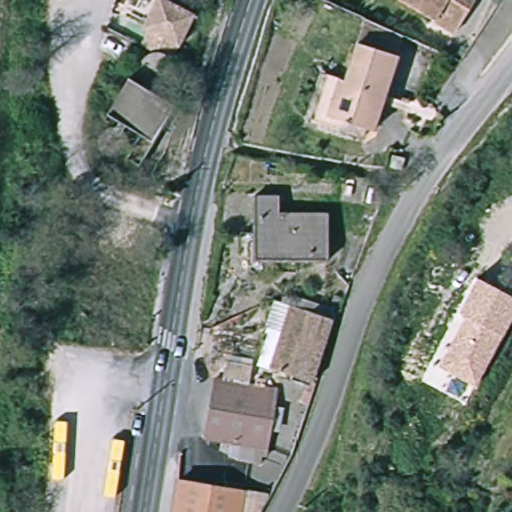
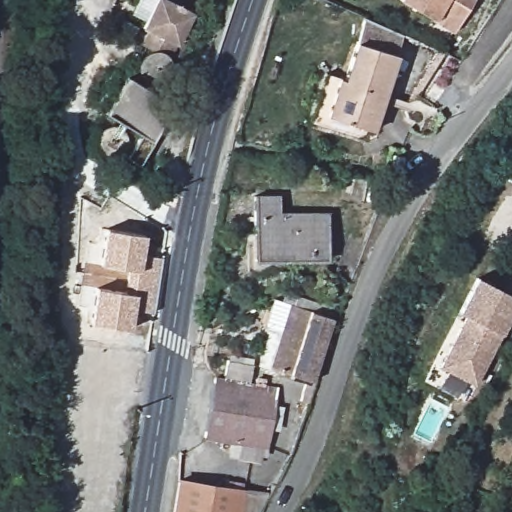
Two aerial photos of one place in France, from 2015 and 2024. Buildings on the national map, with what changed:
unchanged [(169,80),(166,82),(162,83),(158,84),(155,82),(152,81),(148,77),(147,74),(146,70),(146,66),(146,64),(149,59),(152,56),(157,54),(162,54),(165,54),(143,40),(142,40),(151,25),(144,21),(157,0),(176,0),(199,14),(172,57),(169,56),(171,58),(172,60),(174,65),(174,68),(174,71),(173,75),(171,77),(169,80)]
unchanged [(439,16),(402,1),(403,0),(475,0),(465,18),(460,27),(439,16)]
unchanged [(331,112),(343,76),(353,79),(364,45),(372,22),(404,32),(396,54),(371,126),(331,112)]
unchanged [(135,160),(138,155),(133,152),(138,145),(143,135),(110,115),(132,78),(179,104),(151,152),(144,165),(135,160)]
unchanged [(128,146),(127,149),(125,151),(123,153),(120,155),(118,155),(113,155),(110,154),(107,152),(105,150),(104,146),(103,145),(104,141),(104,138),(106,136),(108,133),(110,131),(115,130),(116,130),(118,130),(123,133),(126,135),(127,138),(128,143),(128,146)]
unchanged [(258,268),(258,205),(284,205),(284,221),(332,220),(332,267),(258,268)]
new [(134,306),(130,328),(90,320),(94,287),(120,291),(125,267),(99,262),(105,228),(145,235),(143,255),(162,257),(152,313),(134,306)]
unchanged [(476,280),(512,298),(512,318),(502,336),(477,386),(440,365),(467,317),(459,312),(476,280)]
unchanged [(281,374),(303,311),(332,321),(311,383),(281,374)]
unchanged [(211,437),(219,386),(221,379),(271,386),(283,388),(276,436),(274,448),(211,437)]
unchanged [(251,496),(248,512),(177,512),(181,486),(251,496)]

